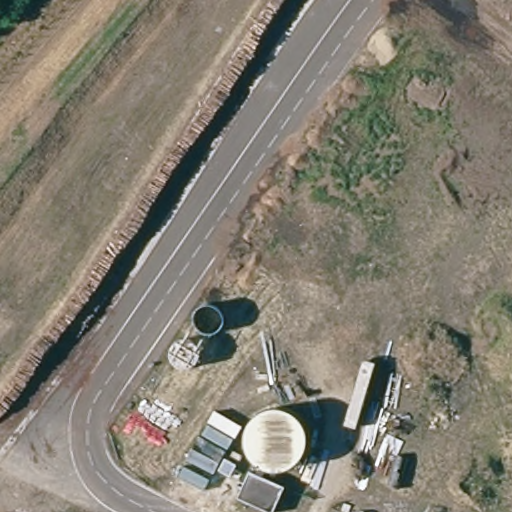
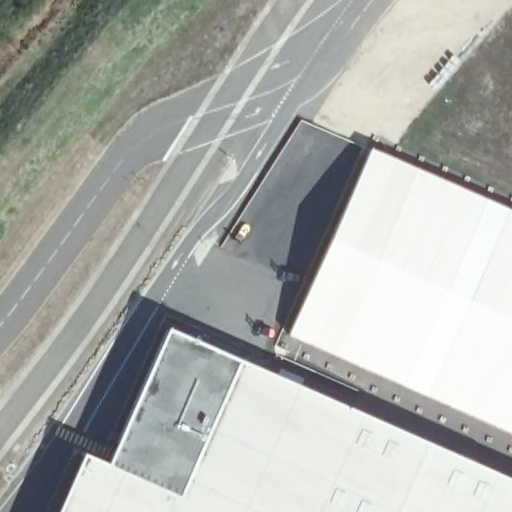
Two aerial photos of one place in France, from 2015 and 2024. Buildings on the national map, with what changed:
new [(471,192),(512,210),(512,438),(485,426),(407,392),(285,337),(368,147),(471,192)]
new [(82,457),(108,468),(168,332),(512,485),(512,512),(58,512),(82,457)]
demolished [(284,488),(270,512),(256,512),(232,498),(249,468),(284,488)]

